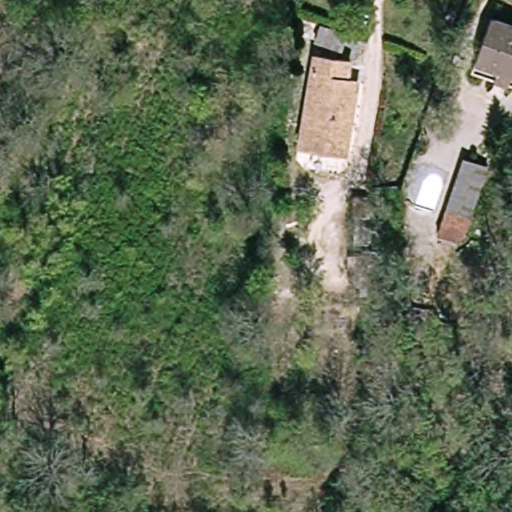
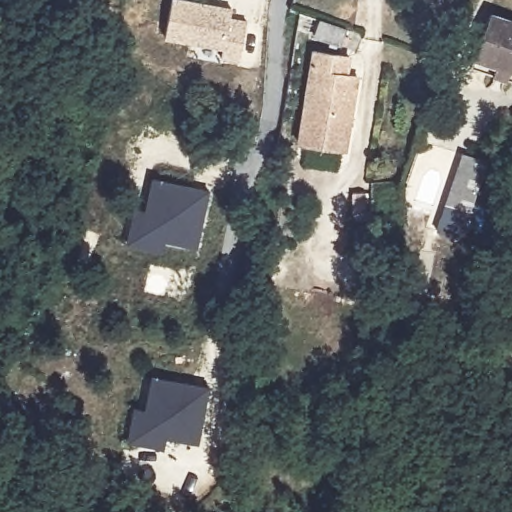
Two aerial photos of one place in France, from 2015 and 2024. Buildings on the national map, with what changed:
new [(183,0),(232,9),(230,19),(248,23),(240,61),(222,59),(224,49),(166,38),(173,0),(183,0)]
unchanged [(511,78),(467,57),(488,14),(512,25),(512,74),(511,78)]
unchanged [(354,34),(347,48),(319,38),(325,23),(354,34)]
unchanged [(364,77),(349,150),(305,142),(323,53),(356,60),(354,74),(364,77)]
unchanged [(430,230),(440,207),(462,155),(485,165),(464,217),(454,240),(430,230)]
new [(146,212),(153,180),(209,193),(196,249),(162,241),(160,254),(123,245),(131,209),(146,212)]
new [(369,228),(349,226),(350,195),(370,198),(369,228)]
new [(146,409),(152,378),(208,387),(198,444),(165,438),(162,451),(125,444),(131,408),(146,409)]

